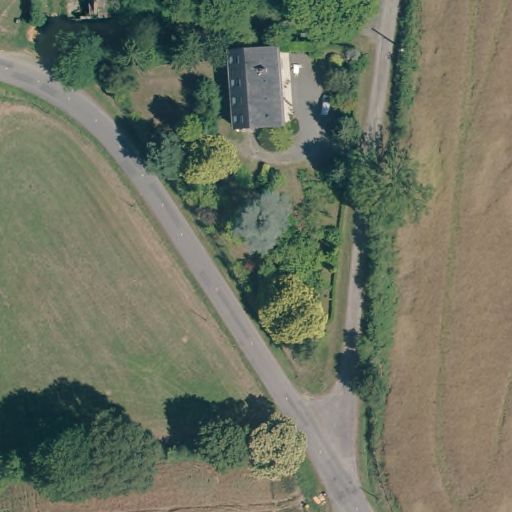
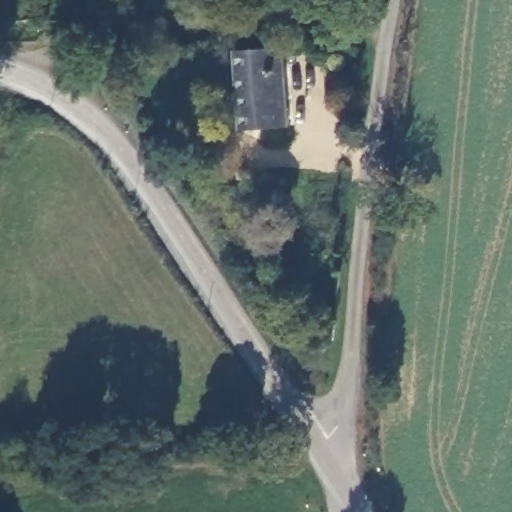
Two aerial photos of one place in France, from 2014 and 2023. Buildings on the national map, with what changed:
unchanged [(280,50),(287,127),(241,130),(234,53),(280,50)]

